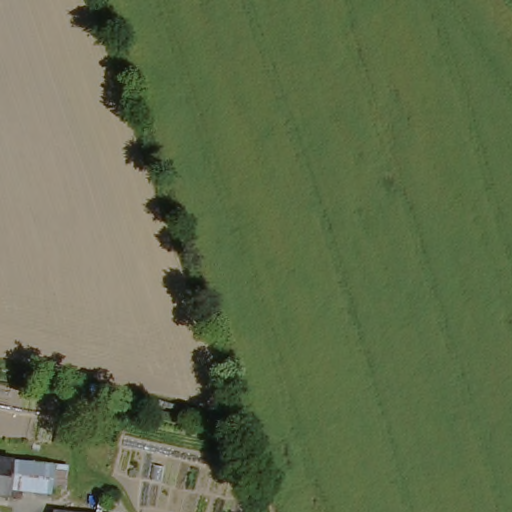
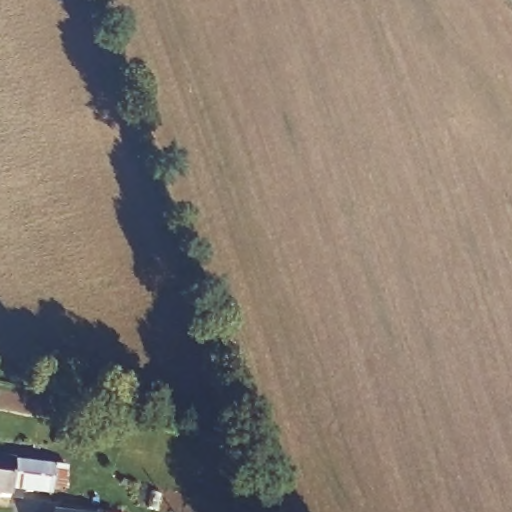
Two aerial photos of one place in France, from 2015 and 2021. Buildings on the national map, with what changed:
unchanged [(5,467),(3,497),(3,504),(0,504),(0,466),(5,467)]
unchanged [(3,497),(5,467),(26,470),(47,472),(46,475),(45,499),(23,498),(3,497)]
unchanged [(77,512),(52,512),(52,510),(77,512)]

